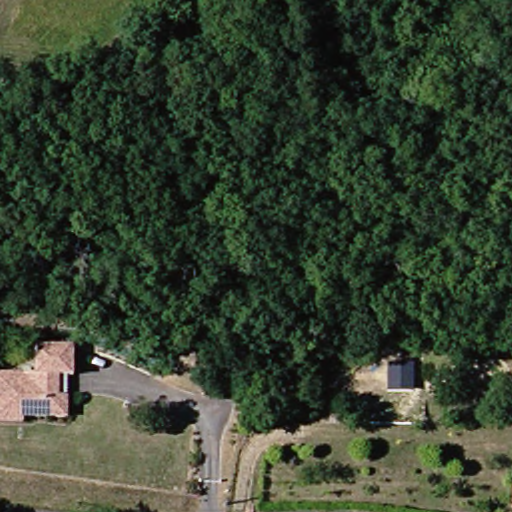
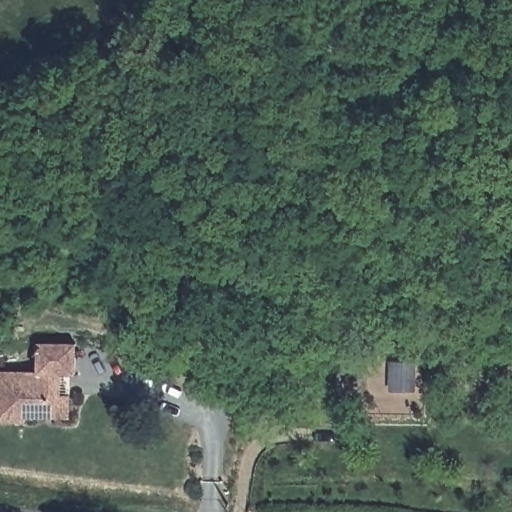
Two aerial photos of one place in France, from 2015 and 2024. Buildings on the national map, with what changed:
unchanged [(72,412),(52,413),(26,413),(26,420),(0,420),(0,372),(40,371),(40,338),(77,338),(77,371),(64,371),(64,394),(72,394),(72,412)]
unchanged [(388,361),(414,361),(413,390),(388,389),(388,361)]

